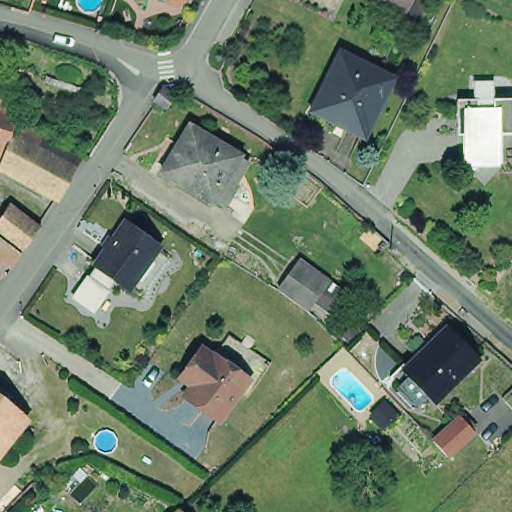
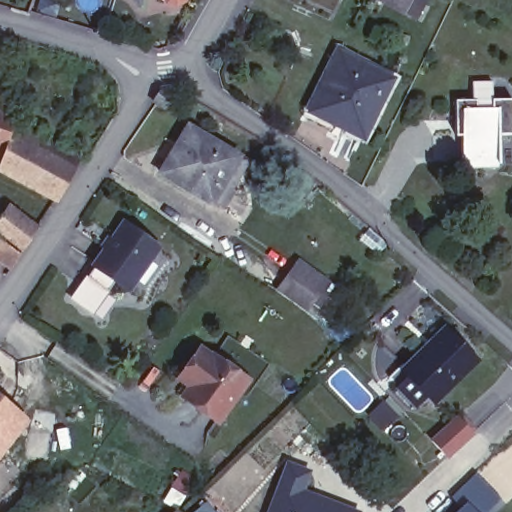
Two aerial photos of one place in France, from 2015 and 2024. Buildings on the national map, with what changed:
unchanged [(411,17),(398,11),(402,4),(395,0),(421,0),(411,17)]
unchanged [(336,123),(309,109),(337,50),(391,76),(366,128),(362,135),(336,123)]
unchanged [(204,66),(210,54),(222,60),(216,72),(204,66)]
unchanged [(175,95),(165,109),(154,101),(163,87),(175,95)]
unchanged [(5,160),(0,158),(0,94),(25,102),(19,120),(33,128),(86,156),(79,167),(66,190),(65,192),(5,160)]
unchanged [(475,98),(475,109),(490,108),(490,98),(512,98),(512,133),(498,133),(499,161),(467,162),(467,134),(455,135),(454,98),(475,98)]
unchanged [(230,187),(234,190),(225,207),(215,201),(214,203),(161,174),(187,126),(241,155),(239,159),(245,161),(230,187)]
unchanged [(0,220),(8,210),(36,232),(23,252),(21,250),(16,261),(0,250),(0,220)]
unchanged [(125,223),(158,247),(129,289),(96,264),(125,223)]
unchanged [(285,270),(296,255),(323,276),(327,279),(336,285),(321,306),(312,299),(308,297),(302,306),(301,307),(272,287),(274,285),(285,270)]
unchanged [(477,361),(436,402),(404,370),(427,348),(446,329),(449,333),(477,361)]
unchanged [(212,357),(214,355),(247,379),(217,421),(183,396),(191,384),(180,376),(186,368),(200,349),(212,357)]
unchanged [(2,419),(0,421),(0,398),(11,407),(2,419)]
new [(383,399),(399,416),(381,431),(366,414),(383,399)]
unchanged [(460,418),(473,432),(446,456),(432,443),(460,418)]
unchanged [(17,432),(0,453),(0,421),(2,419),(17,432)]
new [(312,470),(306,488),(363,512),(265,512),(285,459),(312,470)]
new [(451,498),(477,474),(500,500),(486,512),(453,512),(459,507),(451,498)]
unchanged [(176,512),(172,512),(174,510),(176,512)]

